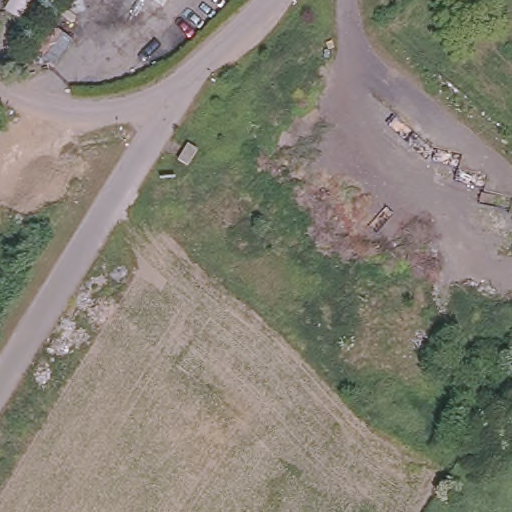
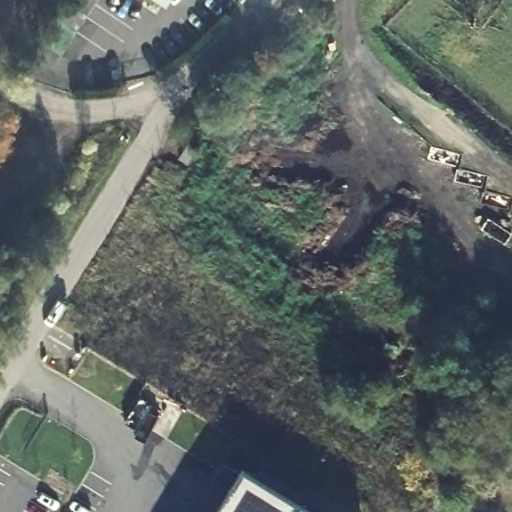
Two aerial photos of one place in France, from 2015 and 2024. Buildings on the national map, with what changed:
unchanged [(155,0),(166,0),(162,5),(155,0)]
new [(313,512),(219,512),(244,471),(313,512)]

